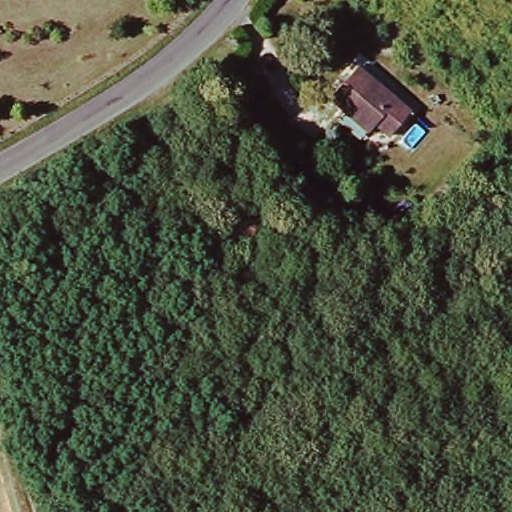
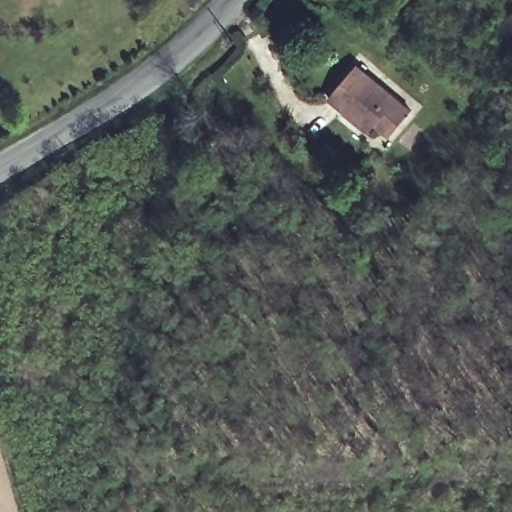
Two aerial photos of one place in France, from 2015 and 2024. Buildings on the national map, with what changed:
unchanged [(334,102),(365,67),(419,114),(397,138),(381,124),(371,134),(347,113),(334,102)]

